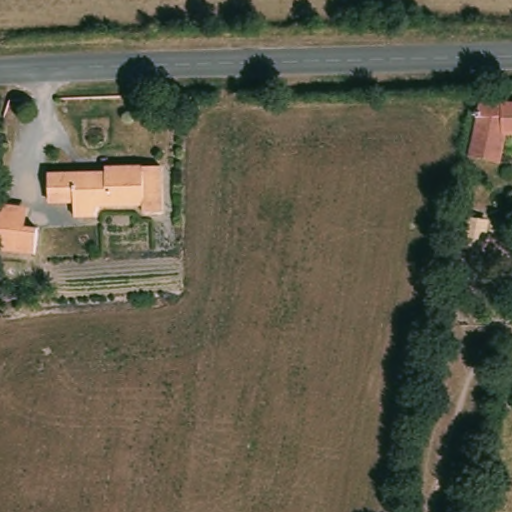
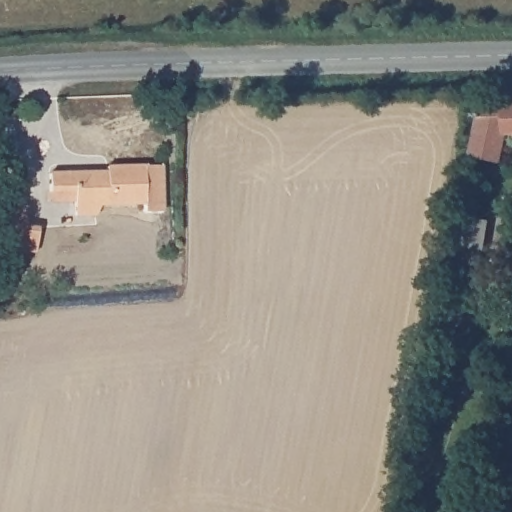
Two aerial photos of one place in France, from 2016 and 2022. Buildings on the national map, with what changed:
unchanged [(512,101),(512,135),(506,135),(506,159),(468,159),(482,103),(512,101)]
unchanged [(54,190),(52,176),(112,174),(111,167),(166,160),(169,208),(151,210),(150,200),(104,204),(104,214),(81,219),(80,200),(54,204),(54,190)]
unchanged [(50,235),(44,258),(5,248),(0,247),(0,212),(2,201),(14,205),(35,209),(30,230),(50,235)]

